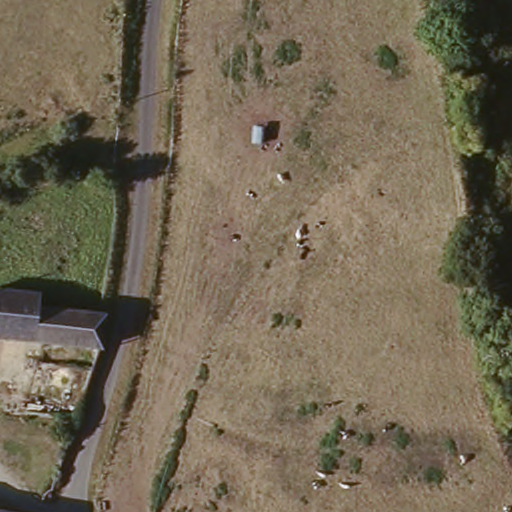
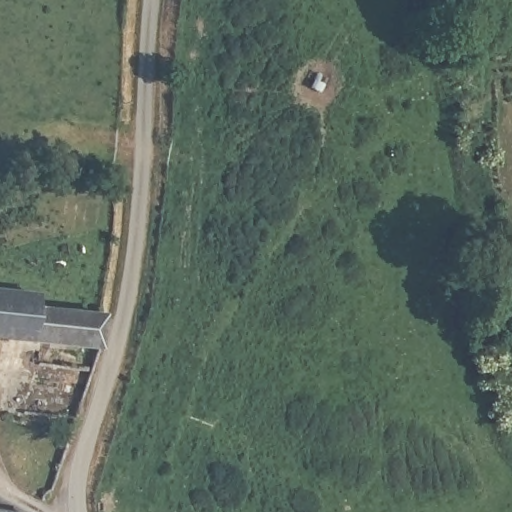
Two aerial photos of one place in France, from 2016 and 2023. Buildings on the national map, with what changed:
unchanged [(100,349),(6,338),(0,337),(0,293),(37,297),(36,309),(103,318),(100,349)]
unchanged [(17,512),(0,512),(0,509),(17,512)]

